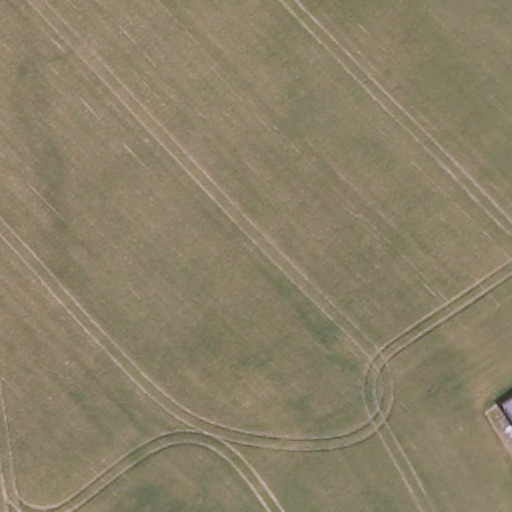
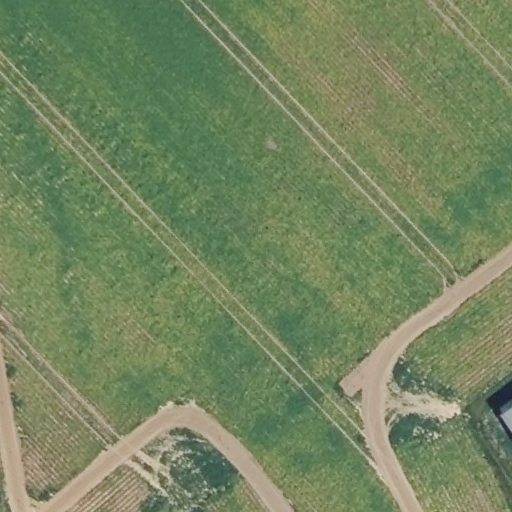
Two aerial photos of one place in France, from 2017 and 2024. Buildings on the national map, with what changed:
unchanged [(507,417),(512,413),(512,424),(507,417)]

